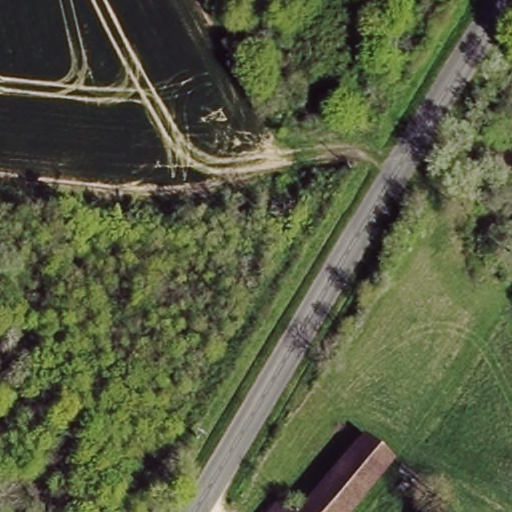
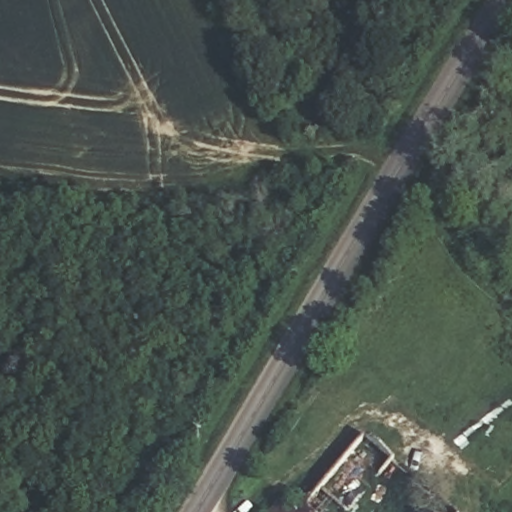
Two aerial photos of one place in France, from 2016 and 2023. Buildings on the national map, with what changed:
unchanged [(397,455),(346,512),(299,512),(303,508),(287,492),(308,471),(310,469),(327,484),(369,441),(385,449),(397,455)]

